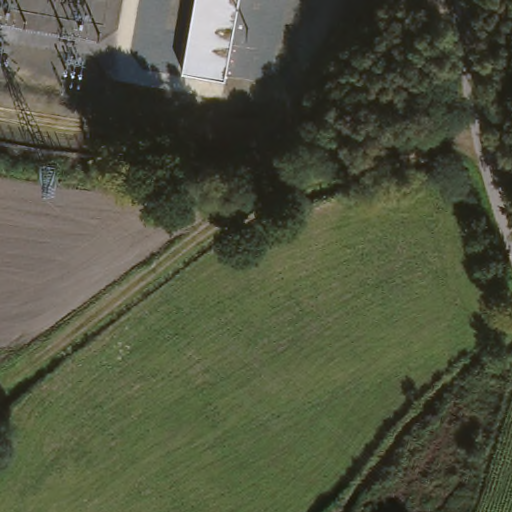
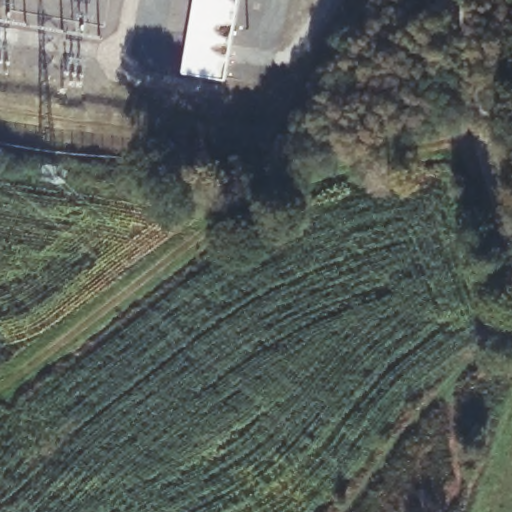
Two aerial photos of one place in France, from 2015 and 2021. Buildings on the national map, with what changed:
unchanged [(176,80),(194,0),(237,0),(215,89),(176,80)]

